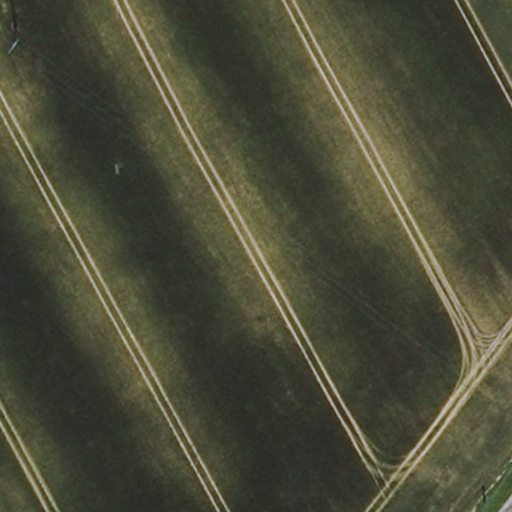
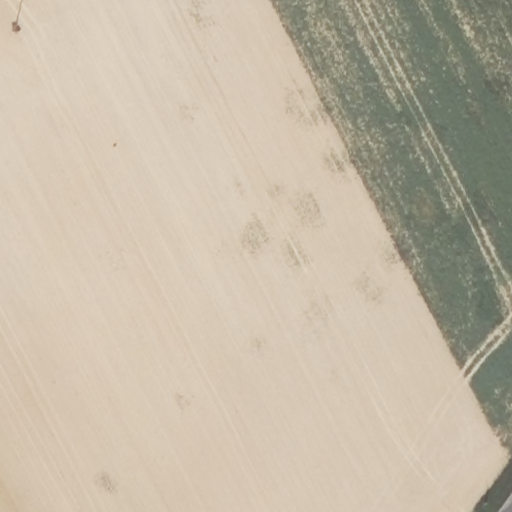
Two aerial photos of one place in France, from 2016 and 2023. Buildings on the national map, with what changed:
[]

